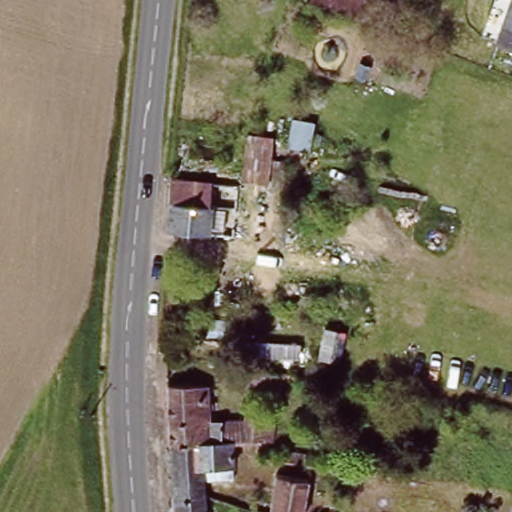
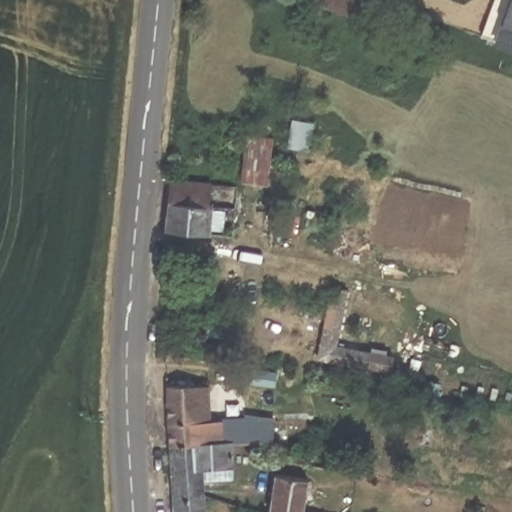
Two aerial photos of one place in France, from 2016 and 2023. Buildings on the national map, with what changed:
unchanged [(358,18),(310,2),(311,0),(365,0),(358,18)]
unchanged [(507,0),(512,0),(512,44),(493,37),(507,0)]
unchanged [(250,147),(273,150),(270,176),(244,173),(247,147),(250,147)]
unchanged [(225,174),(225,182),(210,180),(207,208),(209,208),(208,210),(222,212),(220,230),(206,228),(205,234),(165,229),(170,180),(180,181),(182,169),(225,174)]
unchanged [(314,378),(313,385),(277,379),(275,389),(235,382),(238,366),(314,378)]
unchanged [(165,386),(207,384),(209,421),(168,423),(165,386)]
unchanged [(267,395),(263,414),(245,411),(249,392),(267,395)]
unchanged [(209,421),(225,420),(243,423),(244,419),(245,417),(274,422),(272,441),(257,440),(230,441),(169,446),(168,423),(209,421)]
unchanged [(230,441),(231,465),(201,469),(203,497),(172,499),(169,446),(230,441)]
unchanged [(297,455),(300,445),(323,450),(323,453),(350,457),(348,472),(325,468),(271,459),(272,450),(297,455)]
unchanged [(280,474),(312,480),(307,512),(261,512),(258,512),(245,510),(247,498),(261,501),(275,504),(280,474)]
unchanged [(204,512),(173,512),(172,499),(203,497),(204,512)]

